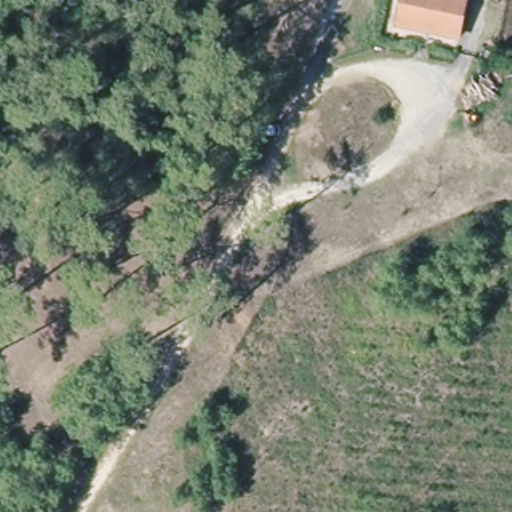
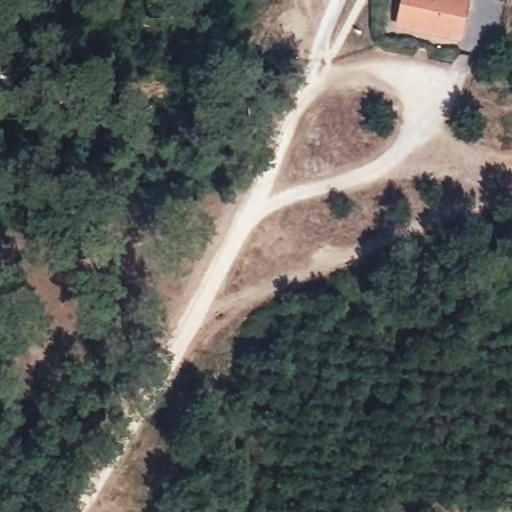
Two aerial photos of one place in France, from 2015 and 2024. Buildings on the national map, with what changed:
unchanged [(394,23),(398,0),(460,0),(453,36),(394,23)]
unchanged [(28,301),(42,281),(63,297),(46,319),(28,301)]

